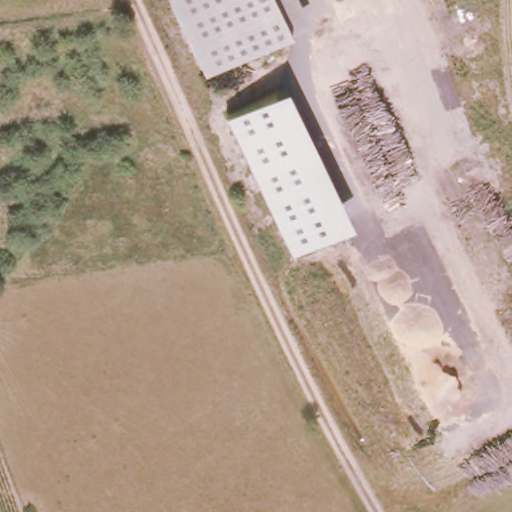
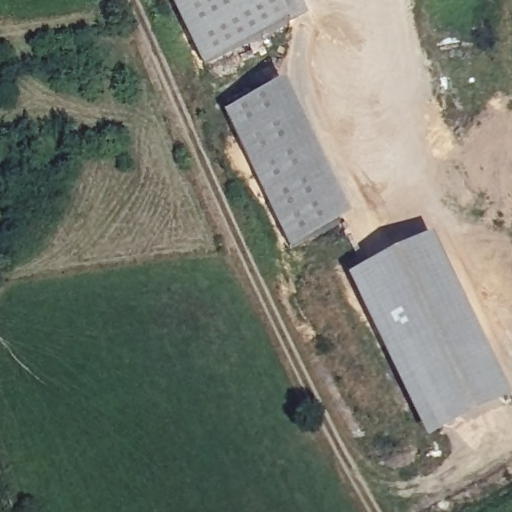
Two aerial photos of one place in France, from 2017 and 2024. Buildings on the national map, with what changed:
unchanged [(203,70),(170,0),(300,0),(308,17),(203,70)]
unchanged [(225,114),(287,84),(353,220),(290,250),(225,114)]
new [(435,434),(350,276),(427,235),(512,391),(512,392),(435,434)]

